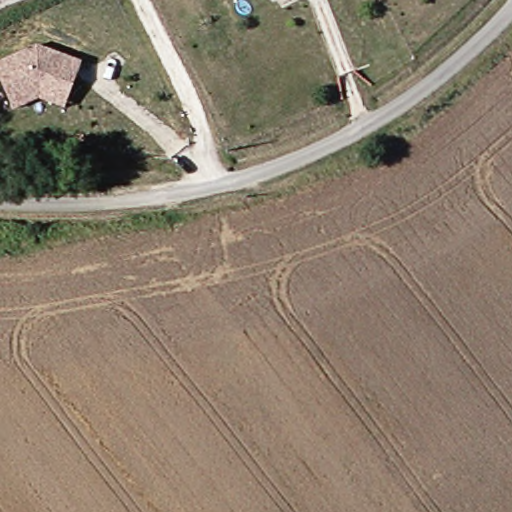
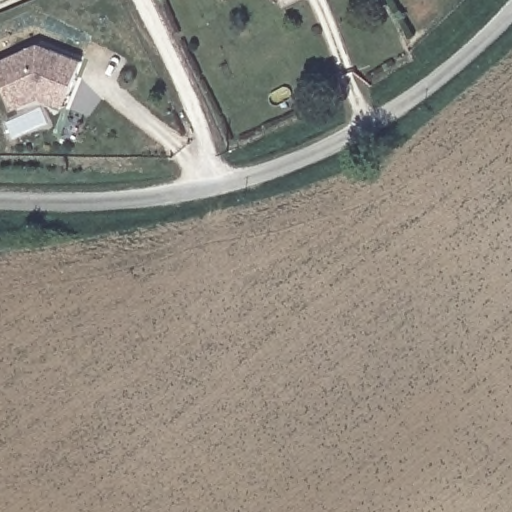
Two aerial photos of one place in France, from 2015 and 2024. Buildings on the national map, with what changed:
unchanged [(14,111),(11,105),(0,79),(0,63),(38,47),(50,51),(82,63),(70,95),(65,109),(39,99),(14,111)]

